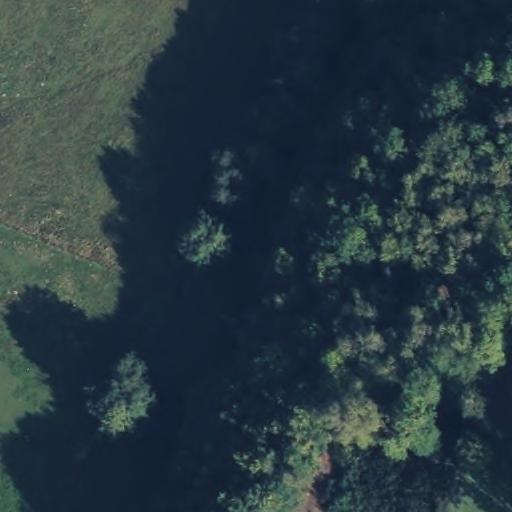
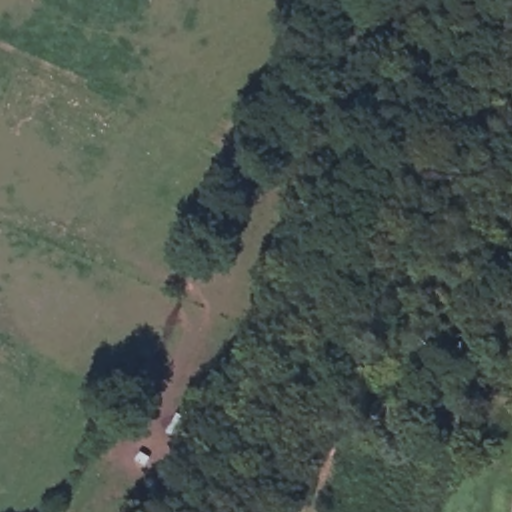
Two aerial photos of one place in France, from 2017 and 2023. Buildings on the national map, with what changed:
unchanged [(189,451),(165,437),(177,410),(200,422),(189,451)]

